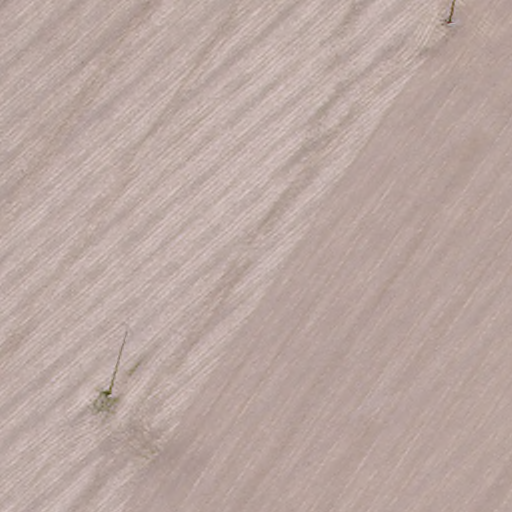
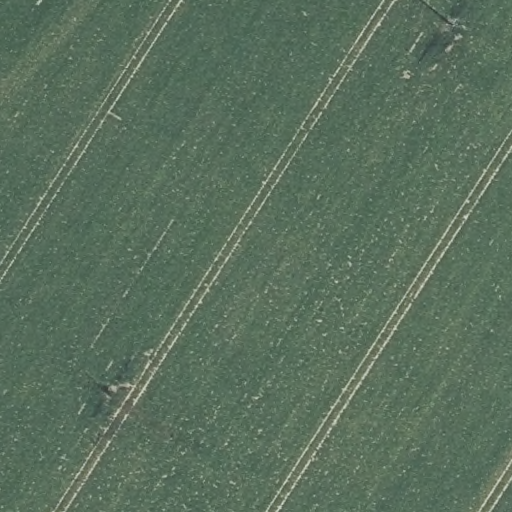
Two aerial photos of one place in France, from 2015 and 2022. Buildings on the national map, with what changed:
[]

